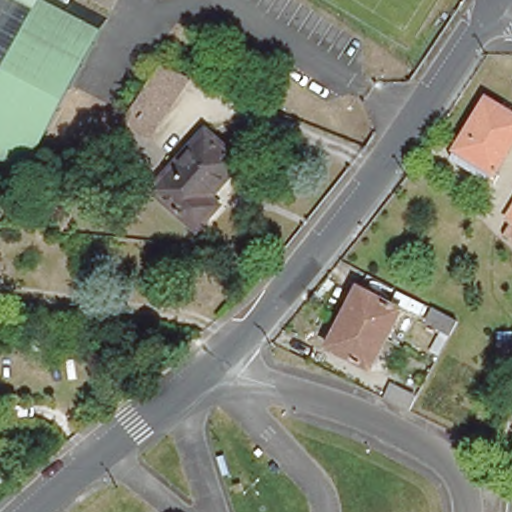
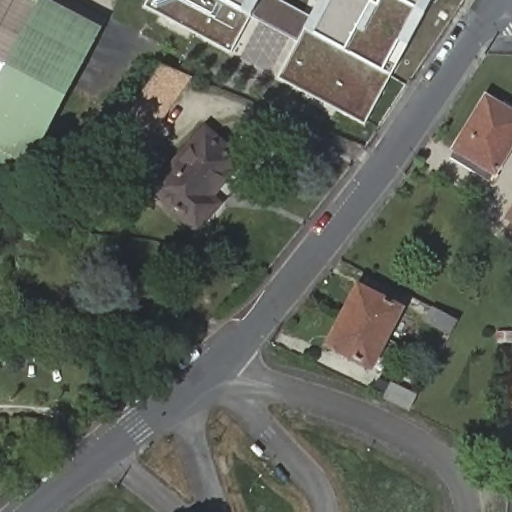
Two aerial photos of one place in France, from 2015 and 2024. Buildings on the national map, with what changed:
unchanged [(25,171),(0,158),(0,0),(96,0),(110,7),(25,171)]
new [(147,7),(151,0),(262,0),(231,56),(147,7)]
new [(282,78),(326,0),(436,0),(366,126),(282,78)]
unchanged [(134,126),(122,119),(160,64),(190,78),(159,125),(150,137),(134,126)]
unchanged [(470,166),(450,155),(485,96),(512,113),(512,141),(495,170),(490,177),(470,166)]
unchanged [(170,169),(204,132),(240,165),(208,199),(216,207),(196,229),(159,192),(153,187),(170,169)]
unchanged [(503,216),(512,201),(512,220),(503,216)]
unchanged [(356,282),(400,305),(370,361),(325,338),(356,282)]
unchanged [(447,335),(420,322),(427,309),(453,322),(447,335)]
new [(497,347),(497,346),(512,346),(512,366),(497,366),(497,347)]
unchanged [(390,381),(417,394),(410,407),(395,399),(383,394),(390,381)]

